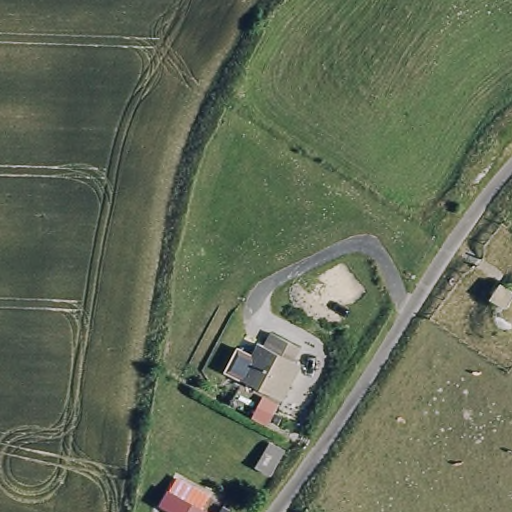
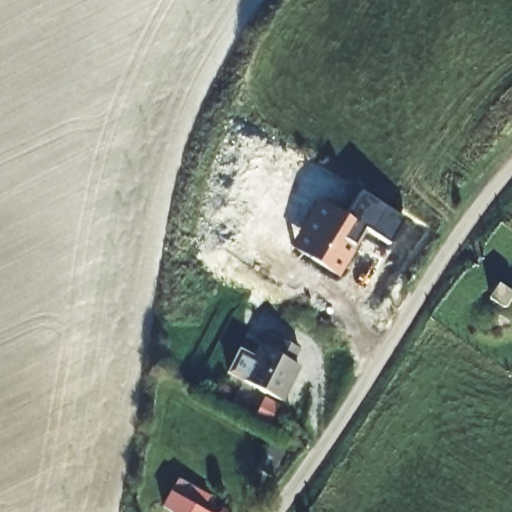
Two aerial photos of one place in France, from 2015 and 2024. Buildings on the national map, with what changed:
new [(346,214),(360,190),(404,217),(390,241),(369,228),(340,275),(290,245),(319,196),(346,214)]
unchanged [(291,361),(297,365),(279,401),(241,381),(260,345),(264,347),(272,335),(298,348),(291,361)]
new [(241,381),(225,372),(239,346),(255,356),(241,381)]
unchanged [(272,478),(257,470),(270,445),(284,453),(272,478)]
unchanged [(174,475),(197,488),(204,492),(197,505),(201,508),(208,512),(176,512),(158,501),(174,475)]
unchanged [(205,477),(217,485),(212,491),(200,483),(205,477)]

